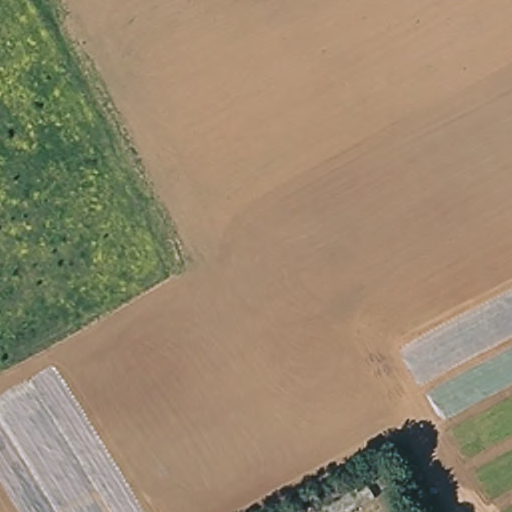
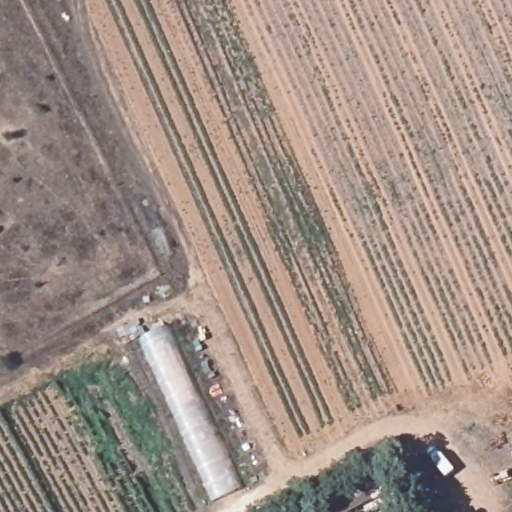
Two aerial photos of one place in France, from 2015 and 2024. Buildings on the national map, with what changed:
new [(170,324),(244,488),(211,505),(140,338),(170,324)]
unchanged [(376,499),(351,512),(324,512),(322,509),(369,484),(376,499)]

